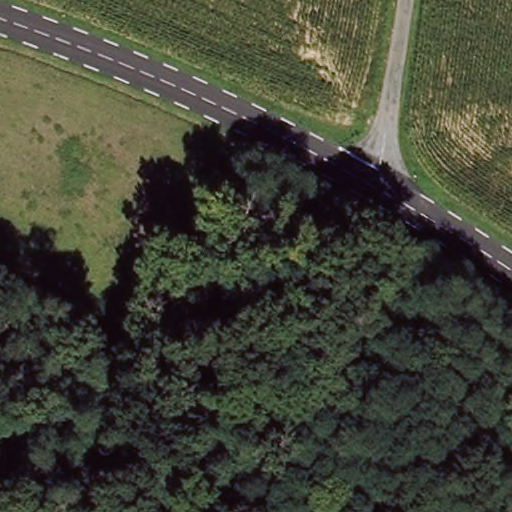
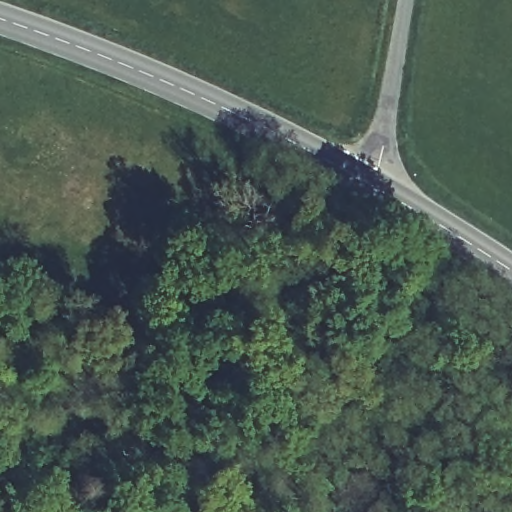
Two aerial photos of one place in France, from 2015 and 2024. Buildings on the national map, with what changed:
[]

